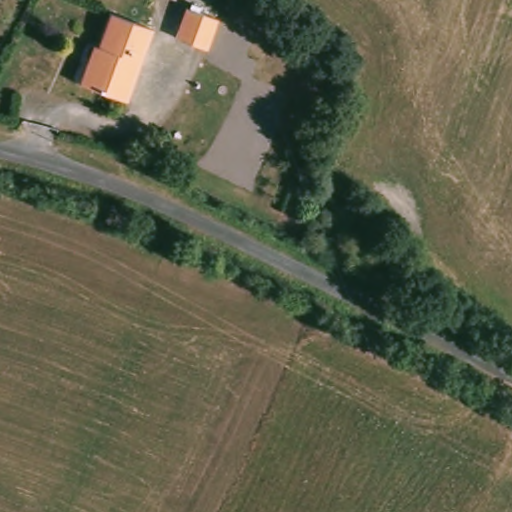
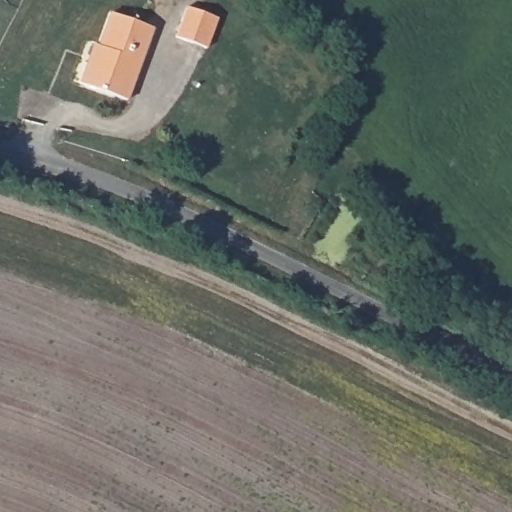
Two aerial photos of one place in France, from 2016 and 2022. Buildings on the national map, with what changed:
unchanged [(216,16),(204,46),(175,32),(186,5),(216,16)]
unchanged [(152,27),(126,97),(79,81),(86,60),(95,61),(111,12),(152,27)]

